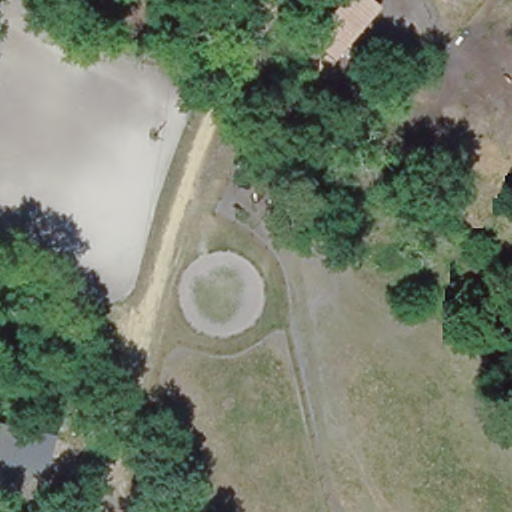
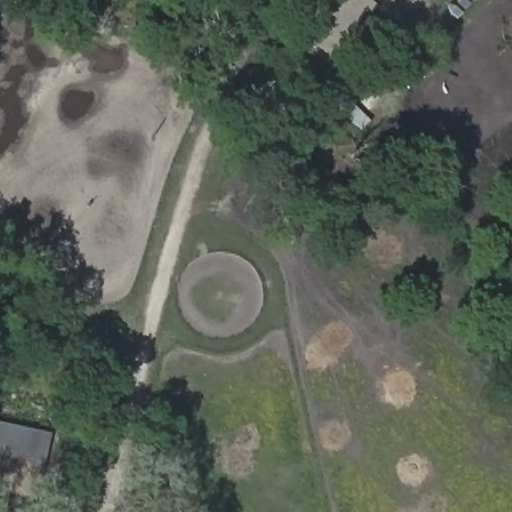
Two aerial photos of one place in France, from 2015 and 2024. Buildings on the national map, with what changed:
unchanged [(327,65),(318,57),(321,52),(304,40),(336,0),(367,0),(376,7),(327,65)]
unchanged [(0,495),(0,422),(54,434),(40,503),(0,495)]

